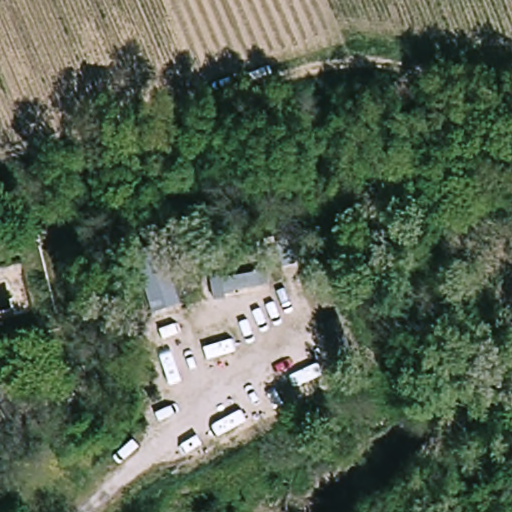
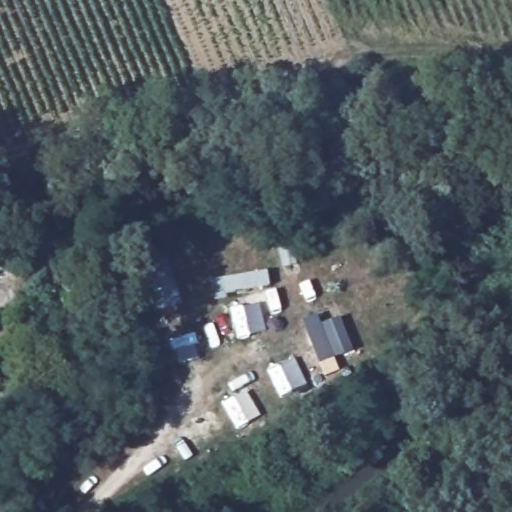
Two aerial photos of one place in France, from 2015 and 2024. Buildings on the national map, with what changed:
unchanged [(148,316),(135,272),(160,264),(178,305),(148,316)]
unchanged [(207,275),(265,264),(272,290),(211,303),(207,275)]
new [(302,322),(317,316),(321,326),(339,319),(352,351),(318,365),(302,322)]

